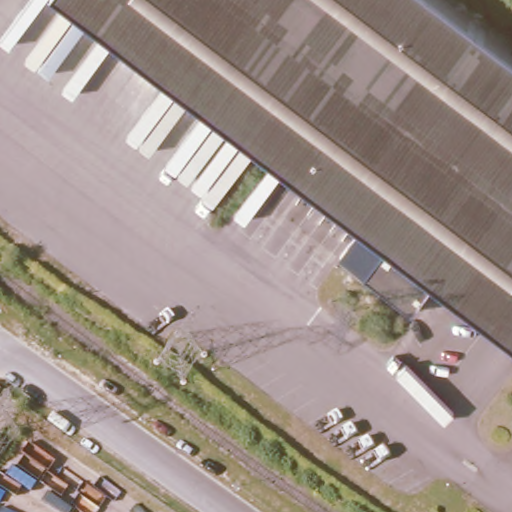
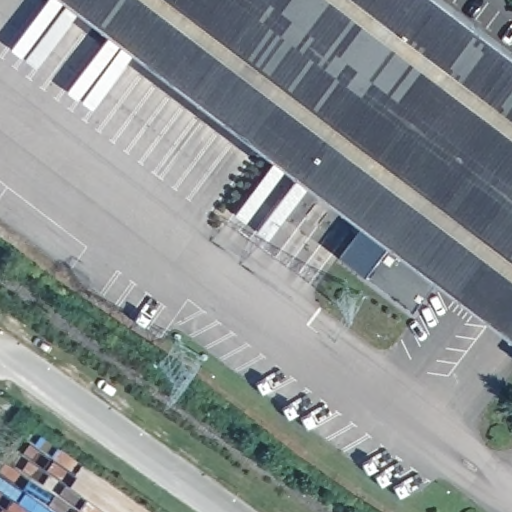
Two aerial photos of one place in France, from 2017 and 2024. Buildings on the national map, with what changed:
unchanged [(512,51),(512,336),(436,279),(412,311),(364,274),(389,243),(68,0),(444,0),(512,51)]

